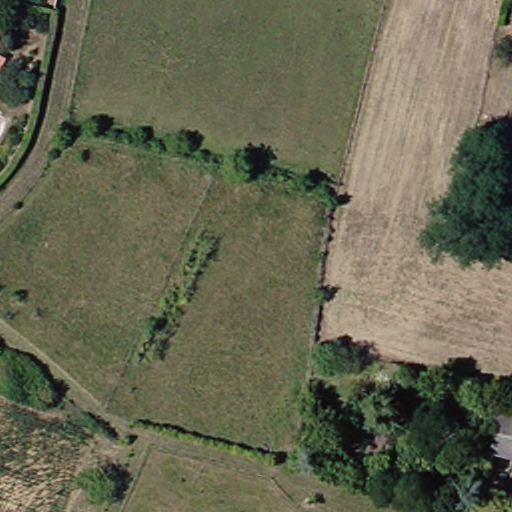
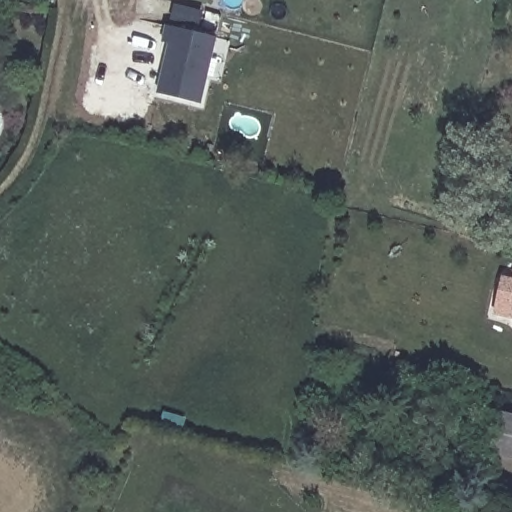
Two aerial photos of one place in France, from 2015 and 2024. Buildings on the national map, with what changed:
new [(202,104),(158,94),(170,44),(162,41),(166,26),(218,38),(202,104)]
unchanged [(0,68),(0,55),(6,58),(0,68)]
new [(493,316),(502,276),(512,279),(512,321),(493,316)]
unchanged [(512,414),(512,457),(499,453),(511,414),(512,414)]
unchanged [(512,491),(512,507),(483,498),(488,484),(512,491)]

